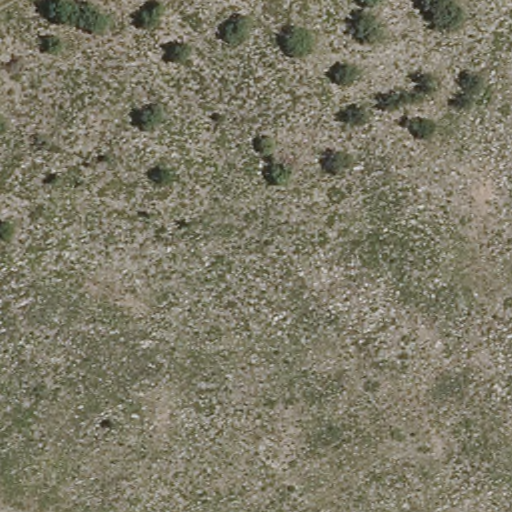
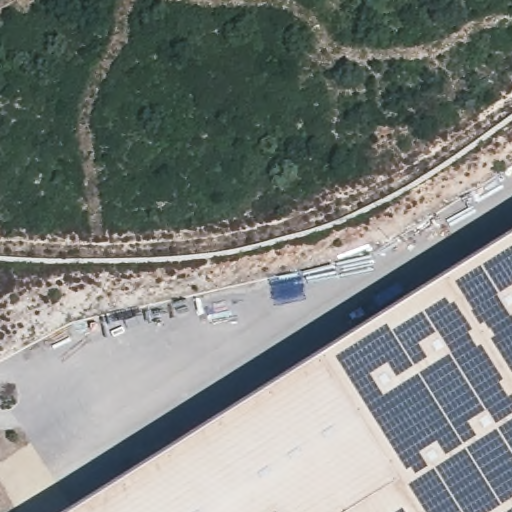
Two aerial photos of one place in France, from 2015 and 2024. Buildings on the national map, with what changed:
new [(512,241),(512,512),(81,512),(512,241)]

